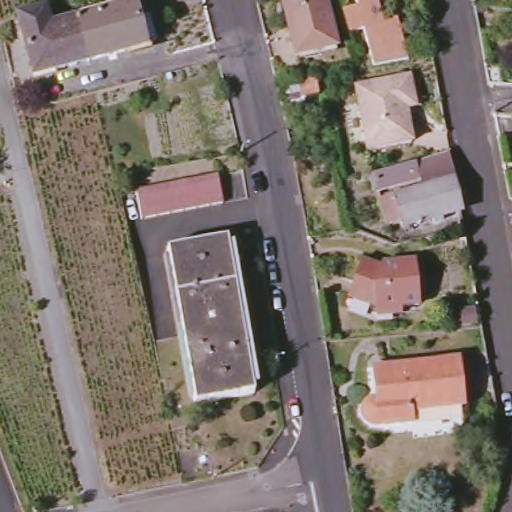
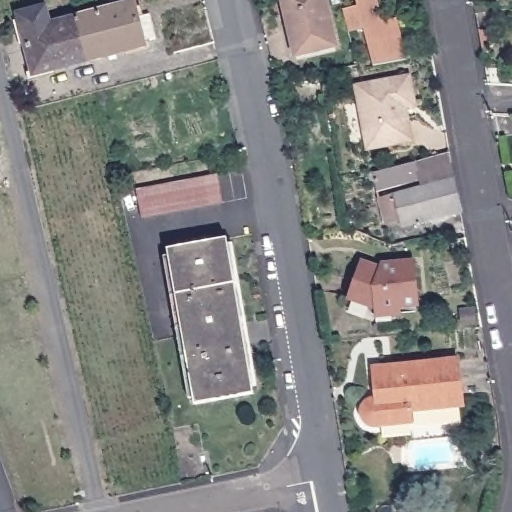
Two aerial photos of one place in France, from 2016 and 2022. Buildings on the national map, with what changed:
unchanged [(297,56),(284,0),(325,0),(335,47),(297,56)]
unchanged [(399,20),(410,64),(375,71),(366,32),(351,35),(345,14),(359,10),(356,0),(377,0),(383,24),(399,20)]
unchanged [(138,22),(151,20),(157,45),(144,47),(145,50),(89,64),(79,22),(78,20),(135,6),(138,22)]
unchanged [(33,79),(18,20),(45,12),(49,27),(78,20),(79,22),(89,64),(33,79)]
unchanged [(315,79),(318,93),(304,96),(301,81),(315,79)]
unchanged [(412,79),(418,108),(404,111),(406,119),(410,118),(415,141),(371,150),(359,89),(412,79)]
unchanged [(459,196),(462,207),(462,209),(404,224),(403,220),(388,225),(381,197),(423,186),(422,179),(379,190),(375,171),(449,152),(459,196)]
unchanged [(217,172),(223,201),(142,218),(136,189),(217,172)]
unchanged [(227,242),(258,396),(199,408),(169,254),(227,242)]
unchanged [(389,280),(392,273),(416,271),(421,313),(403,315),(403,322),(379,325),(377,315),(351,306),(364,271),(389,280)]
unchanged [(459,362),(463,410),(413,415),(414,427),(377,432),(371,431),(368,430),(364,425),(363,420),(363,415),(365,409),(370,406),(373,405),(379,405),(376,372),(459,362)]

